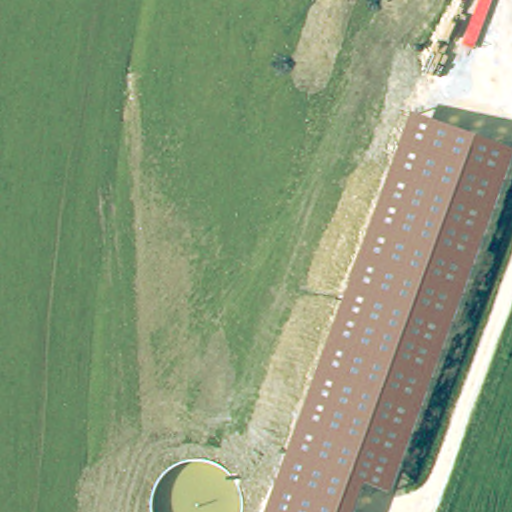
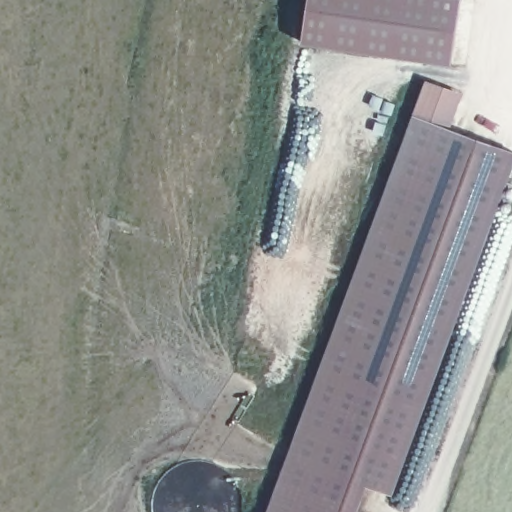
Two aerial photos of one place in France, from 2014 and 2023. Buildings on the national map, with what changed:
new [(299,42),(305,0),(458,0),(449,65),(299,42)]
new [(462,91),(449,127),(414,114),(426,79),(462,91)]
unchanged [(355,512),(267,512),(414,114),(512,150),(512,164),(391,494),(365,484),(355,512)]

